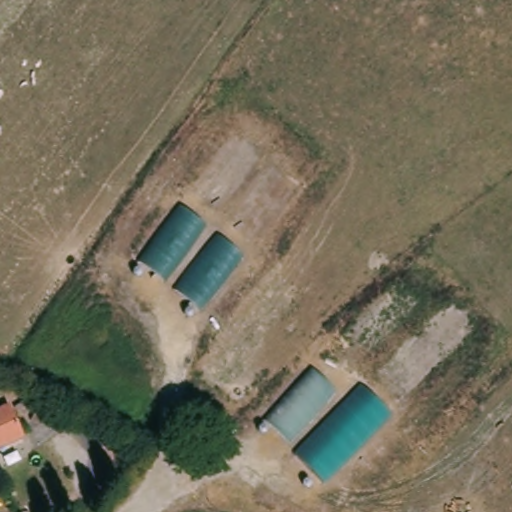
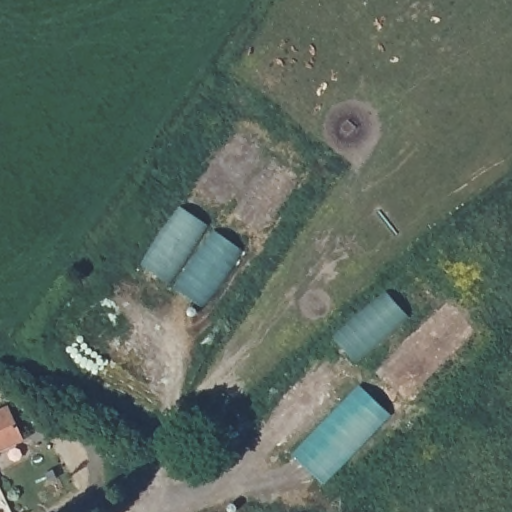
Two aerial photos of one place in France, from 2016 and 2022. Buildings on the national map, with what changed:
unchanged [(139,262),(178,208),(202,225),(164,279),(139,262)]
unchanged [(175,291),(216,236),(240,256),(200,308),(175,291)]
new [(339,345),(383,293),(406,314),(362,365),(339,345)]
unchanged [(265,422),(310,370),(333,391),(289,442),(265,422)]
unchanged [(295,455),(360,388),(391,416),(325,483),(295,455)]
unchanged [(0,450),(0,410),(7,406),(22,439),(0,450)]

